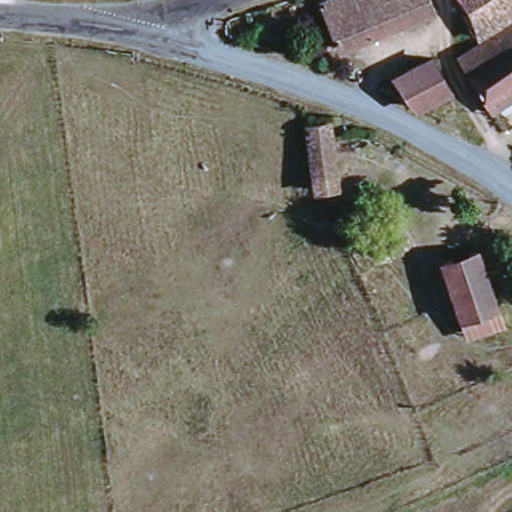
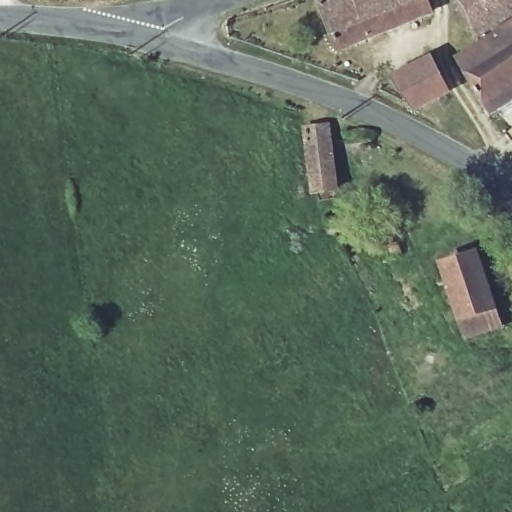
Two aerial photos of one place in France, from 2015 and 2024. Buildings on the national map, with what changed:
unchanged [(429,0),(434,12),(383,32),(339,49),(321,5),(334,0),(429,0)]
unchanged [(512,0),(512,11),(479,32),(458,0),(512,0)]
unchanged [(512,23),(512,99),(494,110),(459,55),(512,23)]
unchanged [(417,110),(395,80),(433,62),(449,95),(417,110)]
unchanged [(338,191),(316,195),(307,130),(330,127),(338,191)]
unchanged [(445,266),(479,255),(498,311),(463,322),(445,266)]

